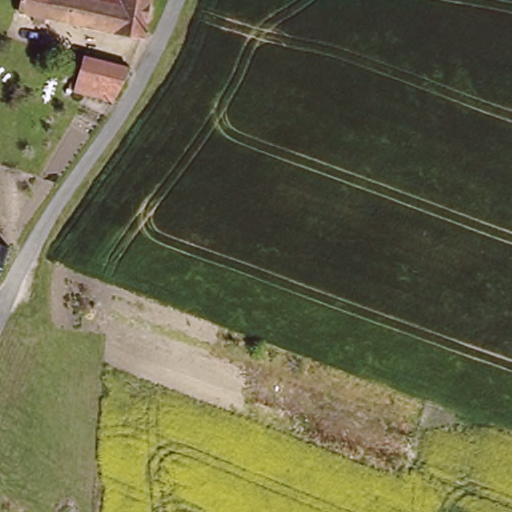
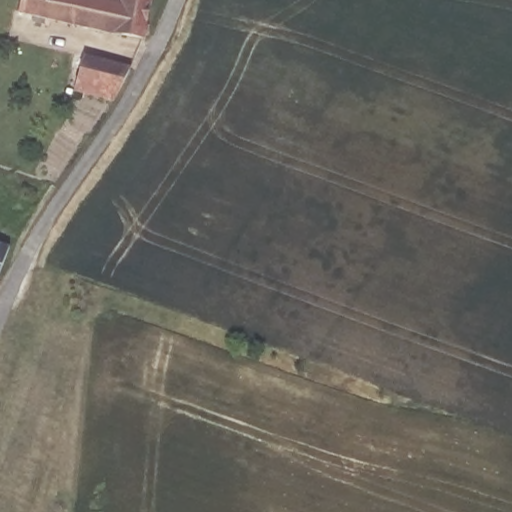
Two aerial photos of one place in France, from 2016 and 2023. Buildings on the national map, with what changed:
unchanged [(43,24),(30,20),(32,14),(17,10),(18,0),(148,0),(142,39),(44,16),(43,24)]
unchanged [(88,54),(89,53),(134,67),(114,100),(70,86),(79,62),(75,61),(78,51),(88,54)]
unchanged [(0,275),(0,246),(9,249),(0,275)]

